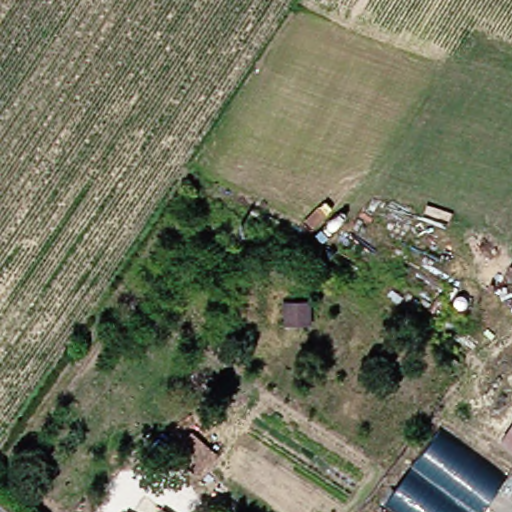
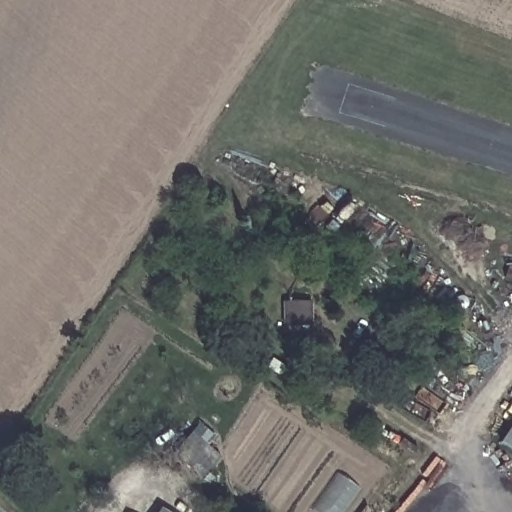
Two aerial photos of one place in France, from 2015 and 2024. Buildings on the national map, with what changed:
unchanged [(500,441),(512,423),(512,451),(500,441)]
demolished [(438,428),(506,475),(478,512),(403,512),(385,499),(438,428)]
unchanged [(133,494),(160,512),(123,512),(133,494)]

